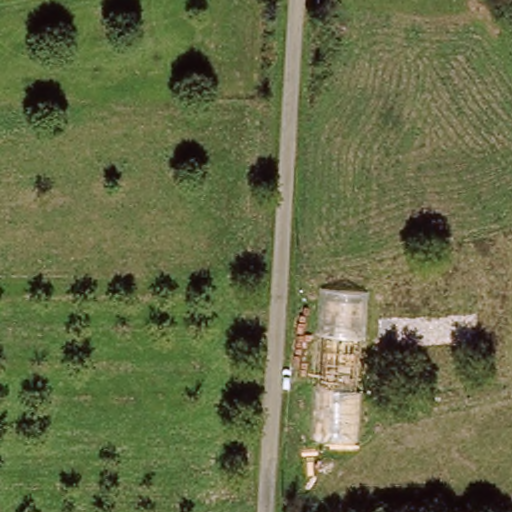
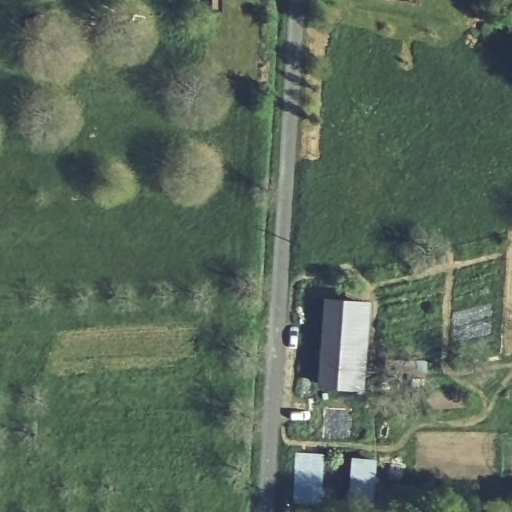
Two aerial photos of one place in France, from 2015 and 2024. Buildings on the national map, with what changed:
new [(365,390),(317,386),(323,297),(370,300),(365,390)]

